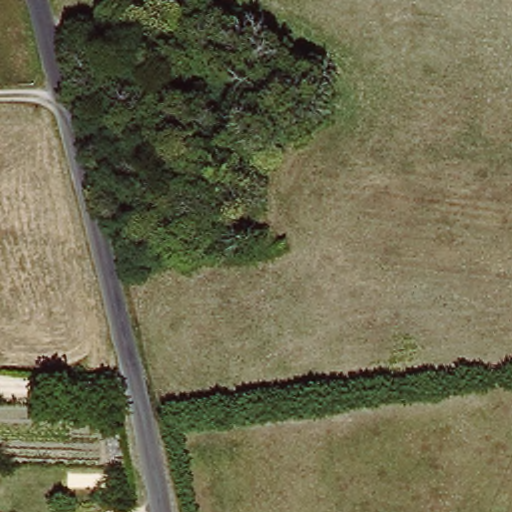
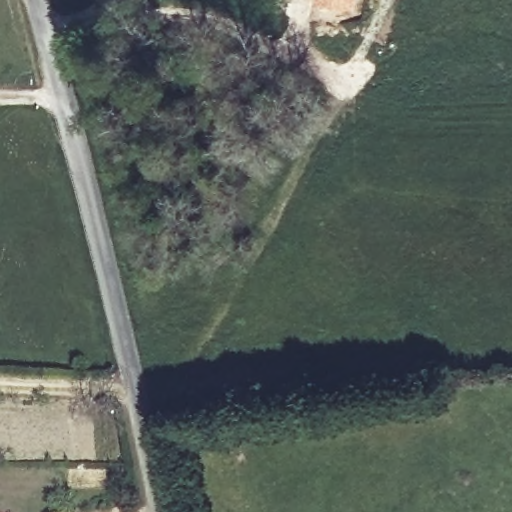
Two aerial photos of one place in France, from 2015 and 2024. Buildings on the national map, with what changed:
new [(314,0),(358,0),(357,14),(314,7),(314,0)]

